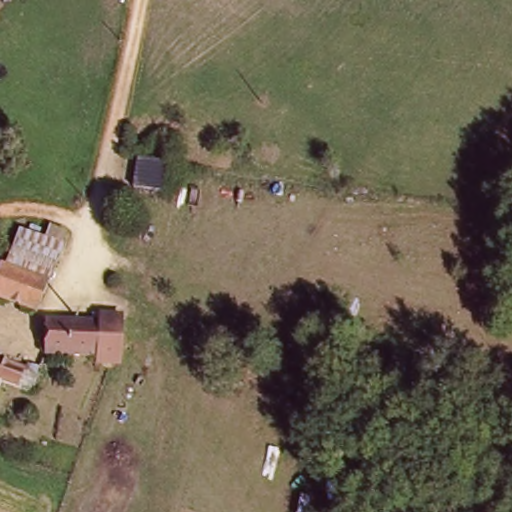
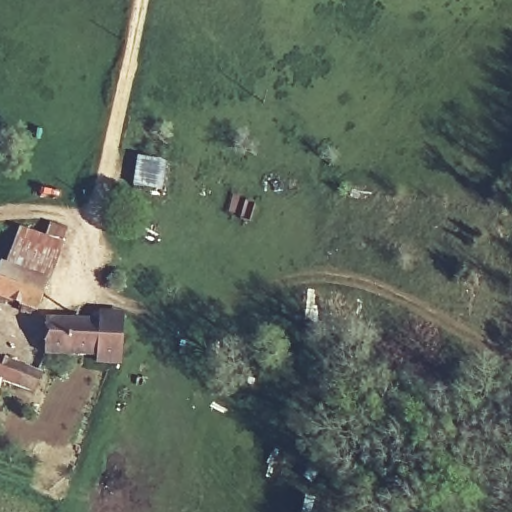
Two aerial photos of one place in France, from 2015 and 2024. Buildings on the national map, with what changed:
unchanged [(44,235),(48,223),(65,230),(43,283),(0,268),(0,257),(13,224),(44,235)]
unchanged [(33,310),(0,298),(0,268),(43,283),(33,310)]
unchanged [(96,362),(96,355),(44,355),(43,321),(97,320),(98,310),(118,310),(118,321),(118,326),(118,363),(106,362),(96,362)]
unchanged [(29,386),(4,377),(0,388),(0,356),(36,369),(29,386)]

